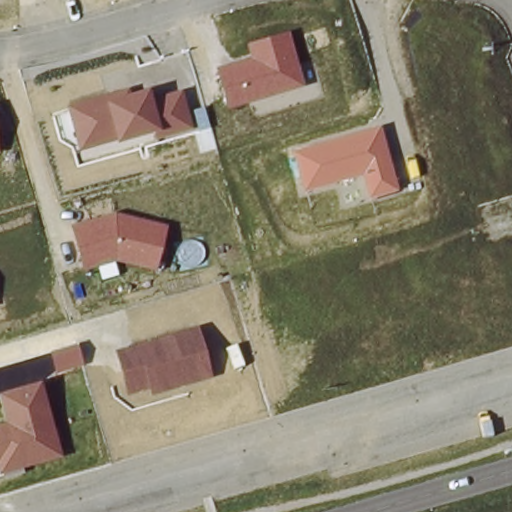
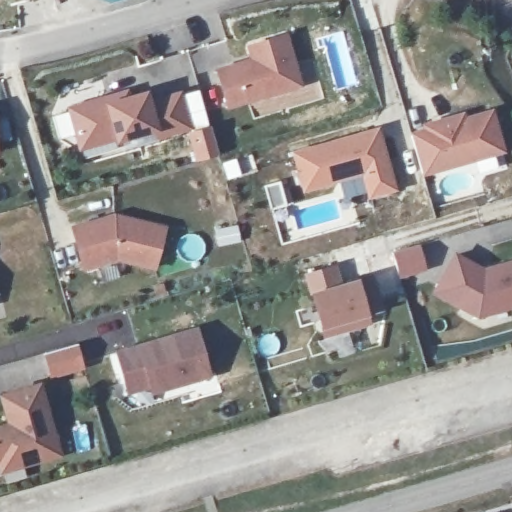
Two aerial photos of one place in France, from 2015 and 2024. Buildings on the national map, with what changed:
unchanged [(250,57),(246,43),(286,32),(302,88),(226,108),(215,67),(250,57)]
unchanged [(130,87),(131,94),(147,89),(150,97),(180,88),(192,131),(156,140),(153,132),(116,143),(115,140),(78,150),(65,105),(130,87)]
new [(410,130),(423,127),(421,121),(465,109),(466,115),(492,107),(505,151),(423,174),(410,130)]
unchanged [(378,125),(396,191),(368,199),(361,175),(300,191),(291,150),(378,125)]
unchanged [(3,159),(0,160),(0,139),(3,159)]
unchanged [(115,211),(167,226),(156,271),(115,260),(83,269),(70,225),(115,211)]
new [(403,278),(396,255),(422,247),(428,270),(403,278)]
new [(485,266),(512,258),(512,308),(478,318),(430,292),(453,249),(485,266)]
new [(382,309),(368,314),(371,324),(325,338),(321,329),(310,291),(302,272),(335,262),(340,281),(357,276),(371,271),(382,309)]
unchanged [(196,325),(211,377),(150,394),(148,387),(126,394),(115,349),(196,325)]
unchanged [(17,435),(8,406),(45,395),(62,455),(0,474),(0,440),(17,435)]

